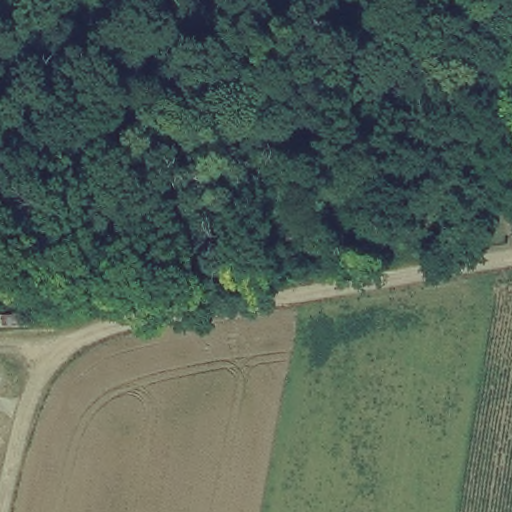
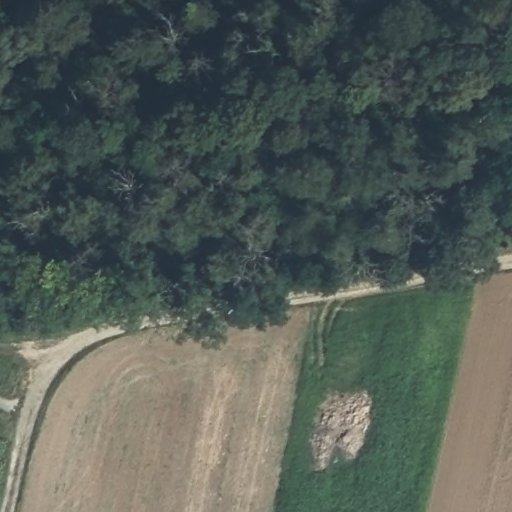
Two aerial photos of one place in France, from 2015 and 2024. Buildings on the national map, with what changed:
unchanged [(0,308),(29,310),(28,328),(0,325),(0,308)]

